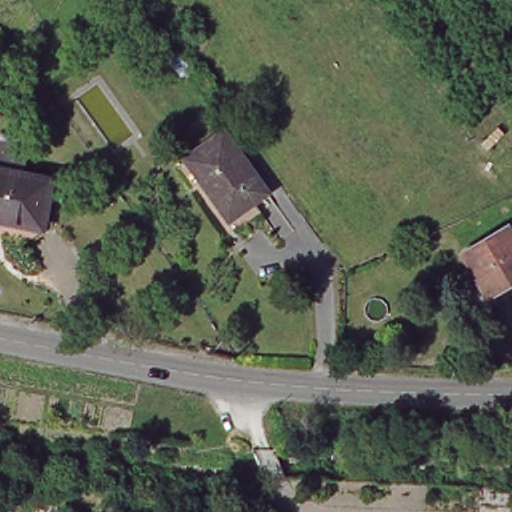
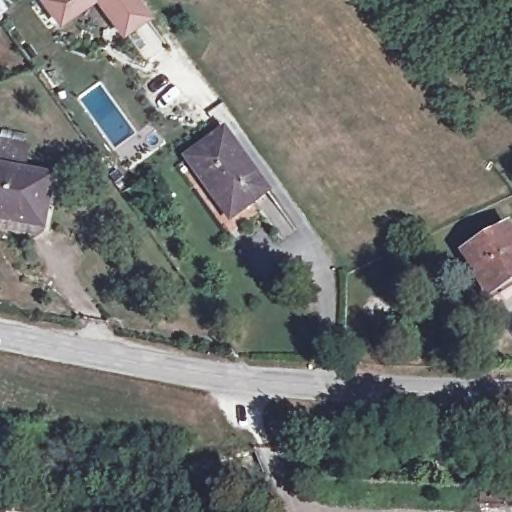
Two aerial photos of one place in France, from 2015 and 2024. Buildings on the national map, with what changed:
new [(43,0),(92,0),(60,23),(43,0)]
new [(98,0),(135,0),(147,16),(130,28),(122,34),(109,16),(98,0)]
unchanged [(186,74),(170,52),(183,44),(198,66),(186,74)]
unchanged [(7,154),(12,131),(37,136),(33,159),(7,154)]
unchanged [(227,131),(271,193),(237,217),(216,188),(212,190),(190,159),(227,131)]
unchanged [(55,223),(42,231),(0,223),(0,157),(65,170),(55,223)]
unchanged [(482,295),(490,291),(467,254),(512,228),(512,285),(486,300),(482,295)]

